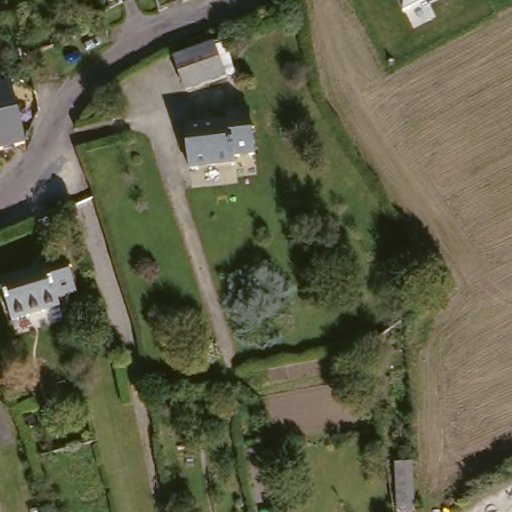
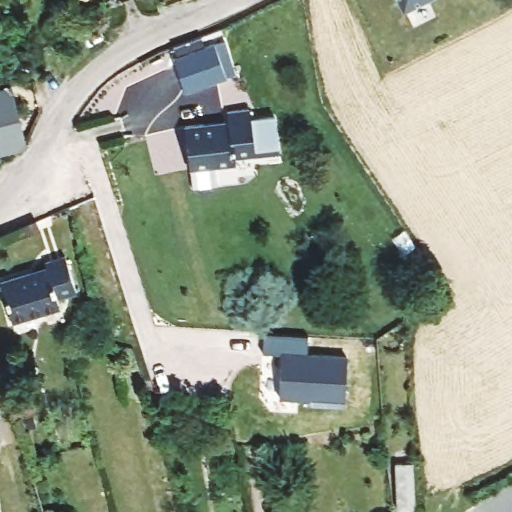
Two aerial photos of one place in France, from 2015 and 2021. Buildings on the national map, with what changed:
unchanged [(149,10),(146,0),(152,0),(154,9),(149,10)]
unchanged [(404,0),(416,0),(406,5),(404,0)]
unchanged [(165,56),(205,43),(217,39),(228,71),(216,75),(175,89),(165,56)]
unchanged [(11,89),(24,146),(0,152),(0,92),(11,89)]
unchanged [(190,119),(207,117),(208,120),(233,117),(231,104),(252,101),(252,102),(258,146),(240,148),(240,154),(195,160),(193,139),(190,119)]
unchanged [(41,270),(39,265),(58,258),(72,292),(54,300),(57,307),(14,324),(0,291),(0,287),(41,270)]
new [(264,336),(307,338),(306,357),(349,360),(346,409),(312,406),(312,401),(280,400),(282,356),(263,355),(264,336)]
unchanged [(406,468),(408,508),(389,510),(386,461),(405,460),(406,468)]

